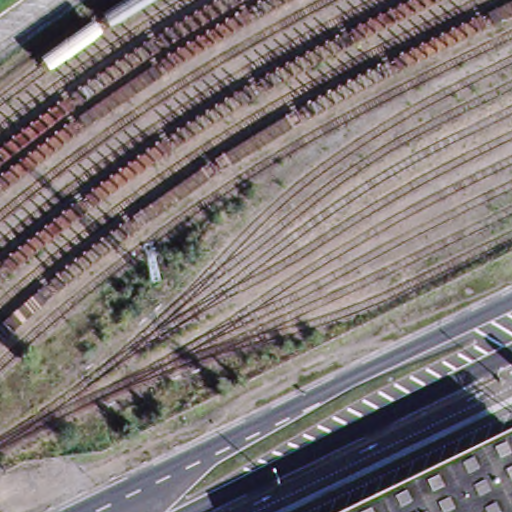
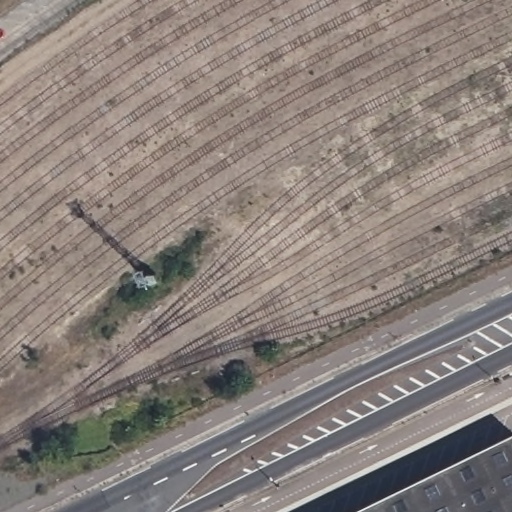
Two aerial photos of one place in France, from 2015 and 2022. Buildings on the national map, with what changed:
unchanged [(357,512),(512,437),(512,512),(357,512)]

